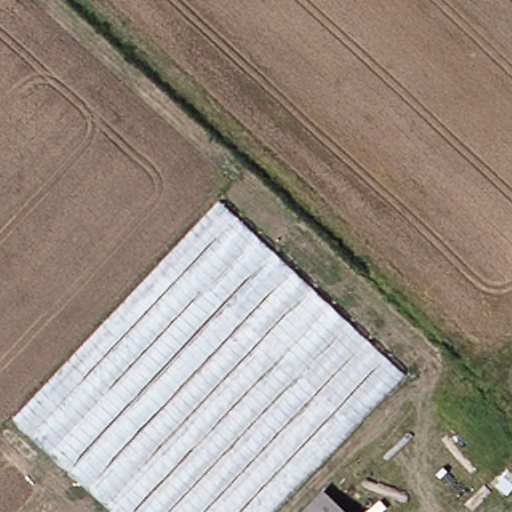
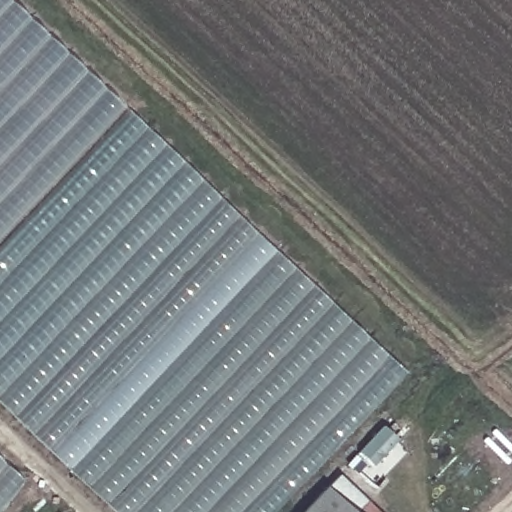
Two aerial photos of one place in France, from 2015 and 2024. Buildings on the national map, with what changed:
new [(7,0),(122,109),(0,238),(0,0),(7,0)]
new [(0,405),(0,248),(127,111),(220,199),(12,417),(0,405)]
new [(70,471),(12,417),(220,199),(275,250),(70,471)]
unchanged [(275,250),(406,374),(278,512),(115,512),(70,471),(275,250)]
new [(23,482),(0,507),(0,457),(23,482)]
unchanged [(321,494),(341,512),(305,512),(321,494)]

